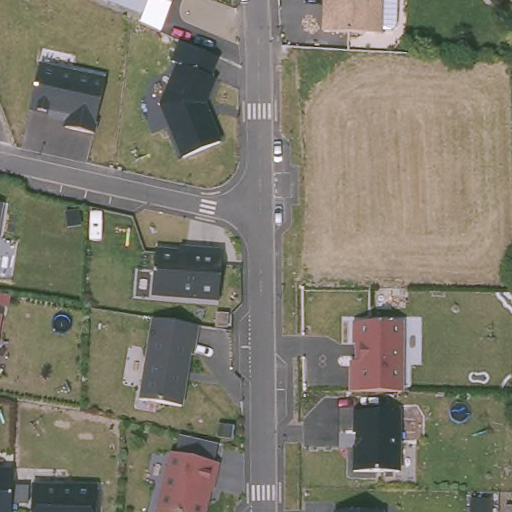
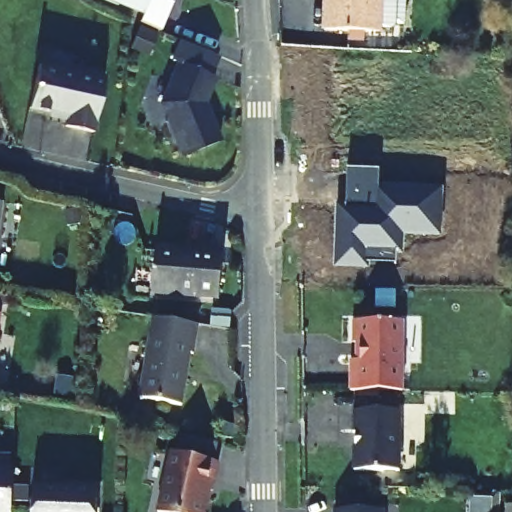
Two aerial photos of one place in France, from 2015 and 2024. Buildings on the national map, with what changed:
unchanged [(97,0),(148,0),(142,17),(97,0)]
new [(157,31),(147,58),(129,50),(142,17),(148,0),(172,0),(160,33),(157,31)]
unchanged [(326,29),(326,4),(332,0),(378,0),(377,33),(326,29)]
new [(398,25),(394,30),(382,29),(383,0),(408,0),(407,26),(398,25)]
unchanged [(205,114),(208,113),(219,142),(182,156),(161,103),(179,62),(174,59),(182,41),(194,46),(211,54),(218,58),(210,75),(216,78),(203,106),(205,114)]
unchanged [(61,110),(25,103),(33,60),(104,73),(93,136),(59,129),(61,110)]
new [(379,185),(444,189),(441,239),(405,235),(404,255),(397,254),(396,264),(370,263),(369,271),(334,269),(337,205),(345,206),(347,169),(380,170),(379,185)]
unchanged [(4,201),(0,227),(0,201),(4,201)]
unchanged [(219,299),(152,294),(156,249),(194,252),(195,248),(223,250),(219,299)]
unchanged [(1,315),(0,321),(0,315),(1,315)]
unchanged [(198,325),(193,354),(190,354),(182,406),(141,399),(154,318),(198,325)]
unchanged [(351,361),(357,361),(357,344),(353,344),(354,322),(404,322),(403,392),(351,392),(351,361)]
unchanged [(355,447),(357,447),(357,433),(354,433),(354,411),(400,411),(400,471),(355,471),(355,447)]
unchanged [(212,492),(206,491),(204,501),(205,504),(203,512),(158,512),(171,453),(177,454),(180,437),(218,445),(214,462),(218,463),(212,492)]
unchanged [(11,512),(0,512),(0,469),(13,470),(11,512)]
unchanged [(96,512),(31,512),(32,486),(64,487),(65,485),(97,486),(96,512)]
unchanged [(506,506),(512,505),(512,512),(506,512),(506,506)]
unchanged [(383,512),(335,512),(335,511),(383,512)]

